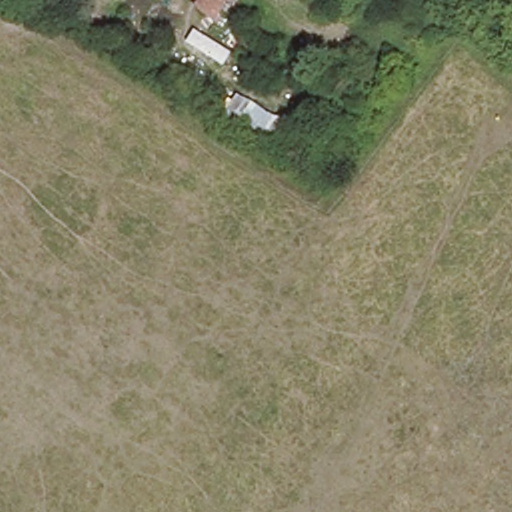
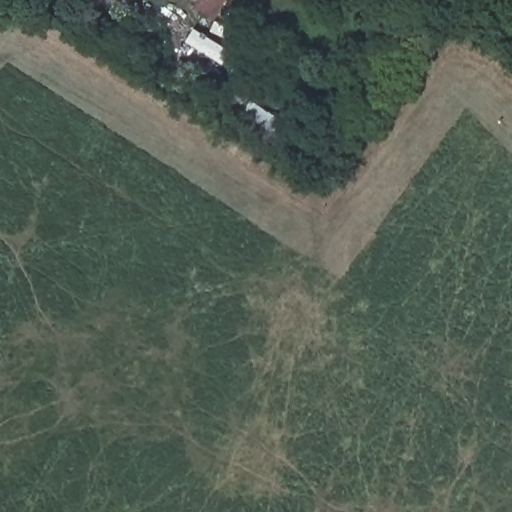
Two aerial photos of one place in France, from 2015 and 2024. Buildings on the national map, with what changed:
unchanged [(119,1),(118,0),(120,0),(119,1)]
unchanged [(214,22),(192,8),(197,0),(228,0),(214,22)]

